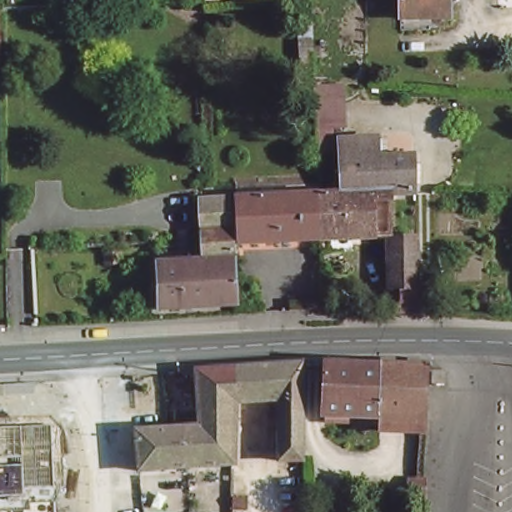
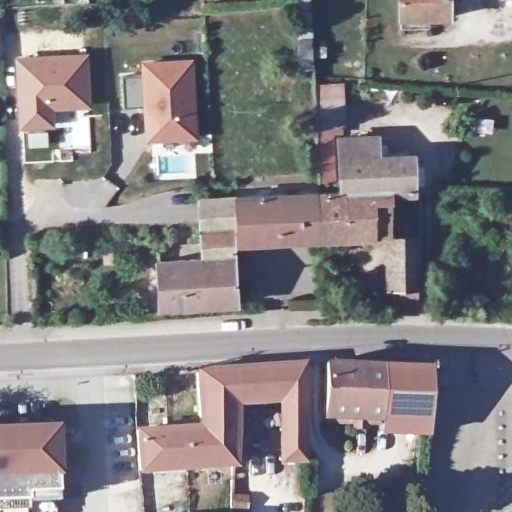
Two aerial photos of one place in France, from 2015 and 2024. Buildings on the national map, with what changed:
unchanged [(397,18),(396,0),(448,0),(448,16),(397,18)]
new [(3,62),(0,62),(0,13),(1,13),(3,62)]
new [(91,107),(53,109),(53,127),(20,129),(15,57),(88,53),(91,107)]
new [(197,140),(145,142),(140,61),(193,59),(197,140)]
unchanged [(337,136),(374,135),(375,155),(411,155),(414,190),(387,192),(338,192),(337,182),(337,136)]
unchanged [(388,235),(318,239),(315,193),(338,192),(387,192),(388,235)]
unchanged [(231,197),(315,193),(318,239),(233,245),(231,197)]
unchanged [(158,308),(153,263),(176,261),(175,252),(200,249),(197,221),(197,199),(231,197),(233,245),(237,305),(158,308)]
unchanged [(391,289),(388,235),(415,232),(417,289),(417,313),(402,312),(401,289),(391,289)]
unchanged [(280,398),(236,400),(233,462),(138,467),(136,430),(200,427),(195,371),(304,363),(303,397),(280,398)]
unchanged [(427,418),(330,415),(331,363),(426,367),(427,418)]
unchanged [(280,458),(280,398),(303,397),(302,460),(280,458)]
new [(53,424),(57,474),(53,474),(55,490),(54,500),(56,512),(0,512),(0,425),(53,424)]
unchanged [(410,496),(410,478),(426,478),(426,497),(410,496)]
unchanged [(248,487),(250,502),(235,506),(236,487),(248,487)]

